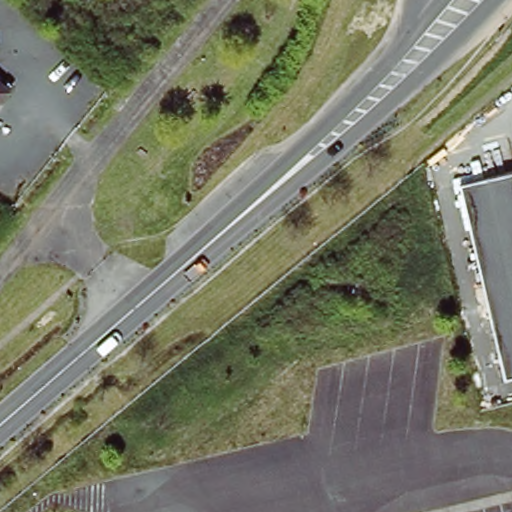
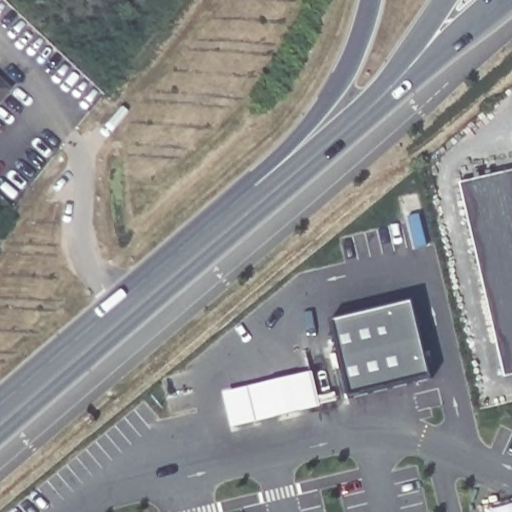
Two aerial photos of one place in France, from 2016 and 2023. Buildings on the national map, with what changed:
unchanged [(0,76),(13,88),(0,103),(0,76)]
unchanged [(507,380),(461,188),(512,175),(512,379),(507,380)]
new [(413,303),(430,377),(350,398),(332,323),(413,303)]
new [(312,372),(320,405),(232,426),(224,393),(312,372)]

